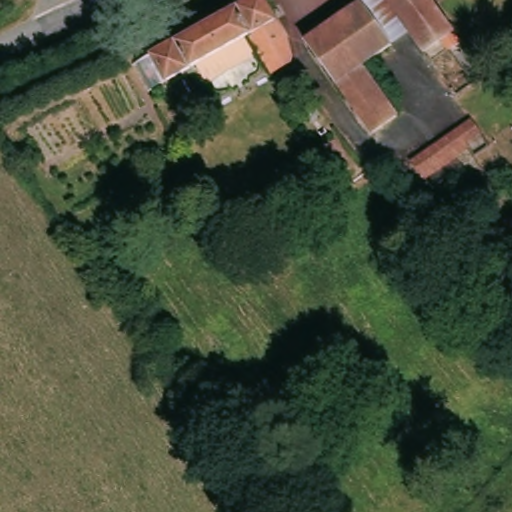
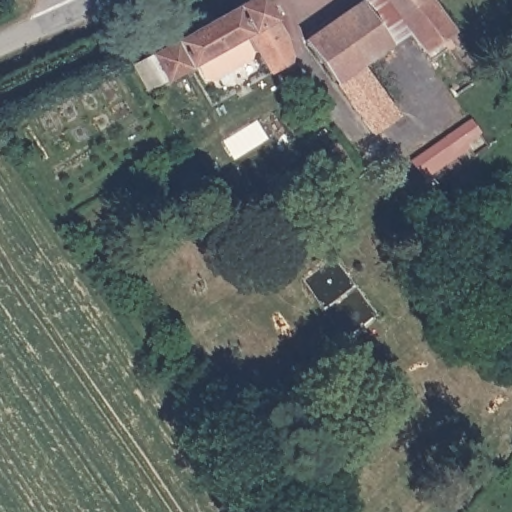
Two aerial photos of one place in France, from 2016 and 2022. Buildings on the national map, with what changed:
unchanged [(130,66),(133,64),(147,56),(151,54),(245,0),(263,0),(286,41),(288,59),(270,70),(250,34),(244,38),(194,66),(190,68),(163,83),(149,91),(145,93),(130,66)]
unchanged [(443,36),(425,48),(404,20),(356,55),(398,114),(372,131),(306,38),(359,0),(434,0),(461,38),(450,46),(443,36)]
unchanged [(251,51),(249,61),(212,83),(202,81),(194,66),(244,38),(251,51)]
unchanged [(471,117),(480,130),(467,140),(470,145),(440,166),(437,168),(435,170),(431,172),(425,177),(411,159),(471,117)]

